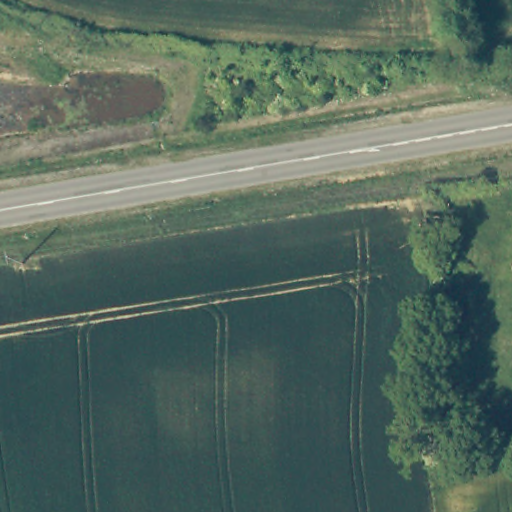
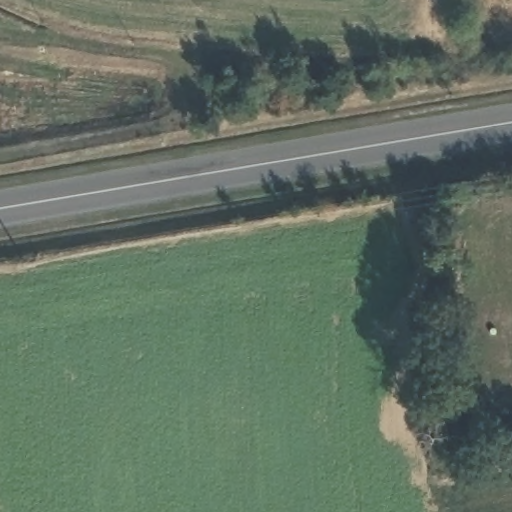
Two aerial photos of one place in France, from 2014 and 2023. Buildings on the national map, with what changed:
[]

